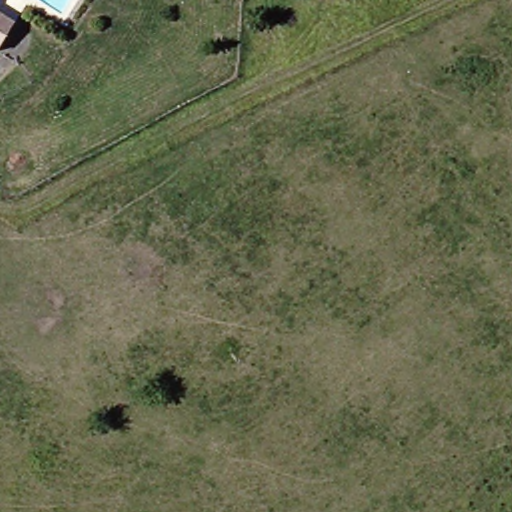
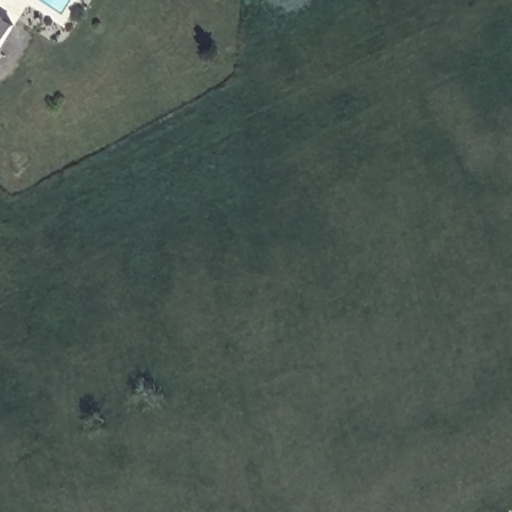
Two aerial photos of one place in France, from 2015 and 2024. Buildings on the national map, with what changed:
unchanged [(17,23),(0,50),(0,13),(17,23)]

